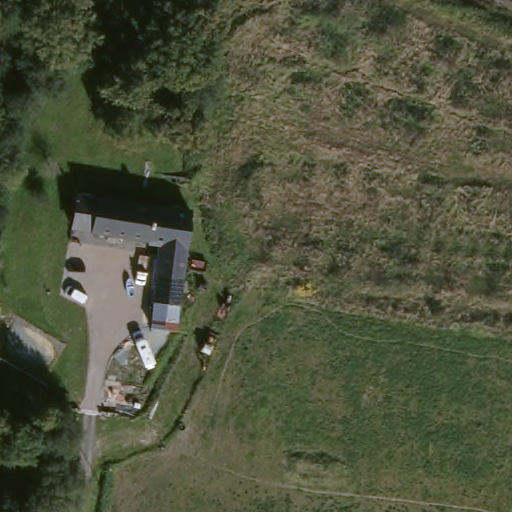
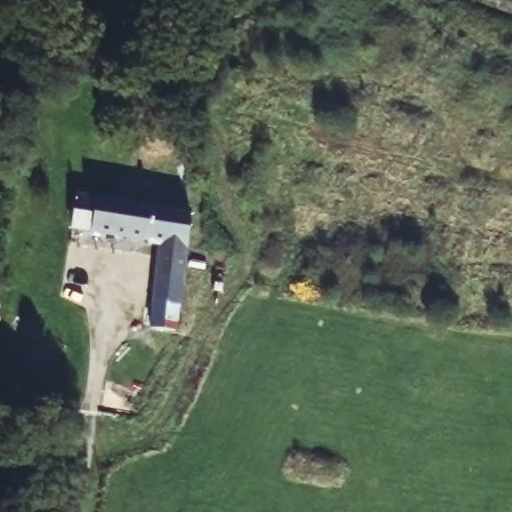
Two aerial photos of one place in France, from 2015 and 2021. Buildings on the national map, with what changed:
unchanged [(190,208),(181,282),(150,276),(154,244),(70,233),(77,196),(190,208)]
unchanged [(176,307),(174,340),(144,339),(149,306),(176,307)]

